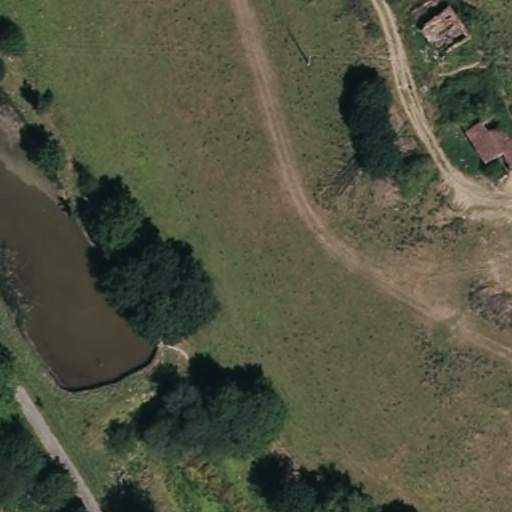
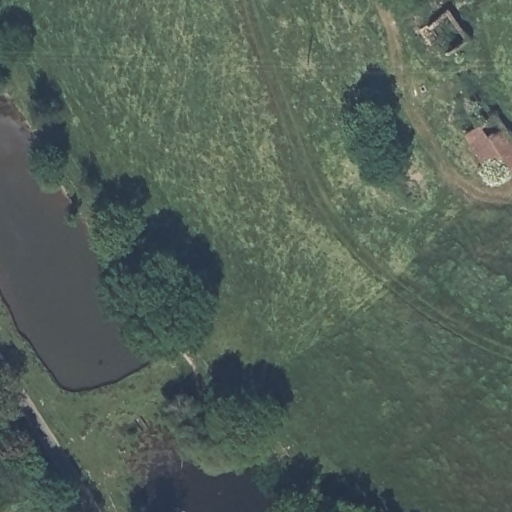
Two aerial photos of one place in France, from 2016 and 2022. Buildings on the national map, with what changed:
unchanged [(468,34),(469,35),(441,57),(418,30),(417,29),(406,15),(427,0),(442,0),(447,7),(453,15),(468,34)]
unchanged [(462,126),(487,109),(512,144),(512,187),(505,191),(462,126)]

